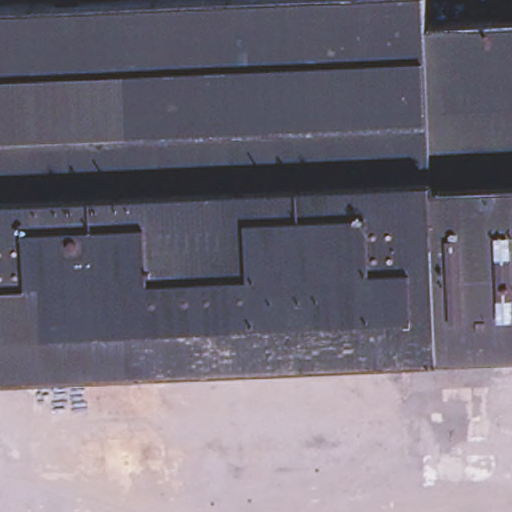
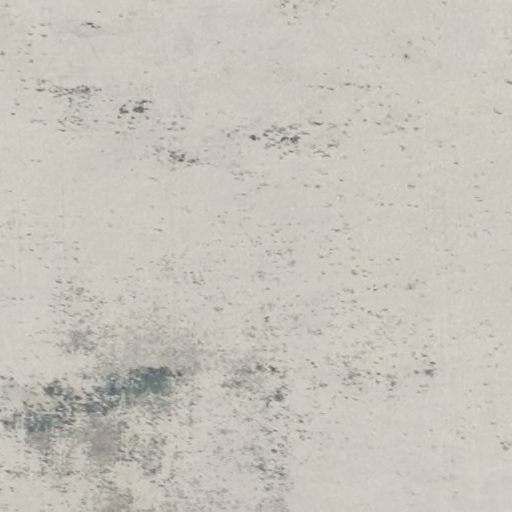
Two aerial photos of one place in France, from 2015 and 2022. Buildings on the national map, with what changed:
demolished [(0,182),(0,4),(84,0),(428,0),(429,23),(512,19),(512,170),(0,182)]
demolished [(0,361),(0,182),(512,170),(512,339),(0,361)]
demolished [(499,454),(496,383),(512,382),(512,453),(499,454)]
demolished [(503,507),(469,508),(376,512),(295,512),(294,399),(352,392),(394,463),(468,458),(481,457),(503,507)]
demolished [(217,419),(237,417),(238,448),(214,449),(214,475),(44,495),(40,417),(215,395),(217,419)]

